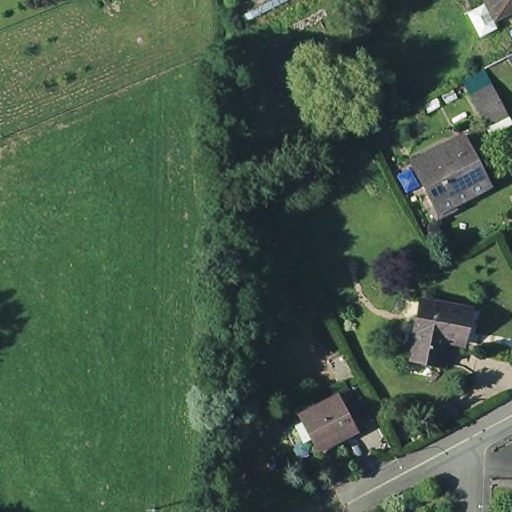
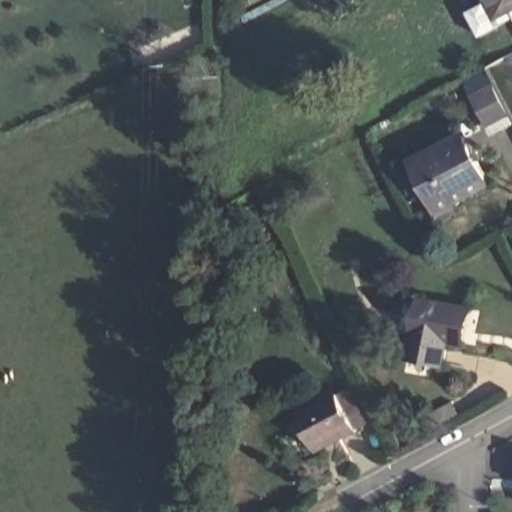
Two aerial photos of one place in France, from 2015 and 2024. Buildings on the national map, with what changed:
unchanged [(464,9),(482,0),(512,0),(512,10),(495,19),(499,27),(478,37),(464,9)]
unchanged [(503,107),(482,118),(467,91),(489,80),(503,107)]
unchanged [(412,160),(457,133),(469,154),(476,152),(491,180),(453,200),(456,203),(434,215),(428,202),(433,200),(412,160)]
unchanged [(404,357),(417,301),(456,309),(467,312),(460,347),(440,343),(436,364),(404,357)]
unchanged [(314,456),(294,419),(330,400),(339,395),(359,430),(351,434),(351,436),(314,456)]
unchanged [(459,400),(466,412),(439,425),(433,413),(459,400)]

